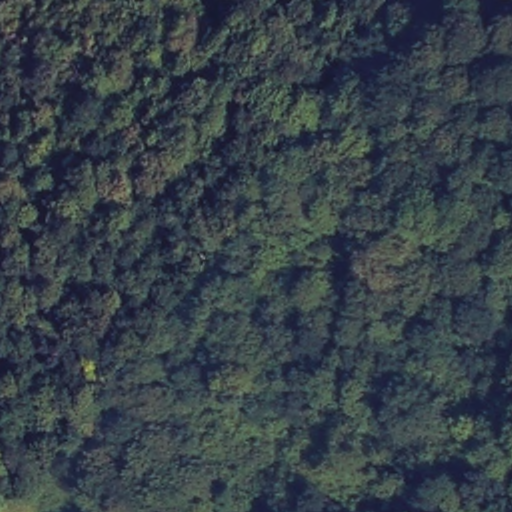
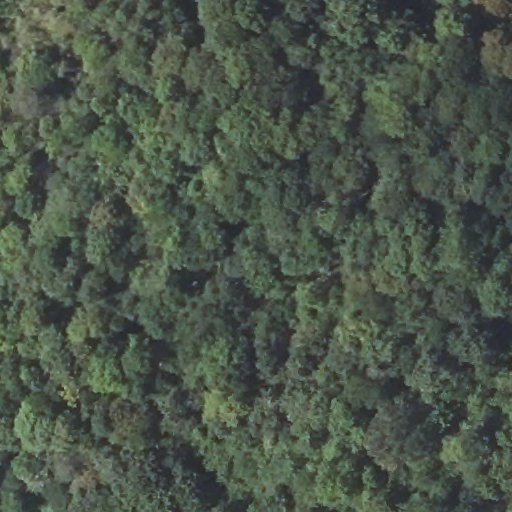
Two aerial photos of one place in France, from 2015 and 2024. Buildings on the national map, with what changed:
unchanged [(357,281),(364,308),(337,317),(329,289),(344,283),(357,281)]

